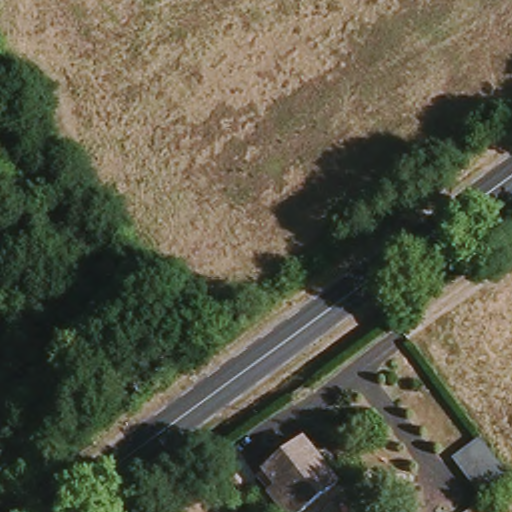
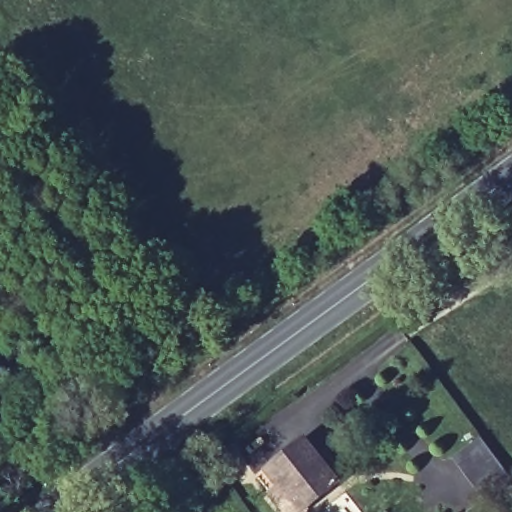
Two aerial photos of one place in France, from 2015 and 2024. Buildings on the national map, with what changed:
unchanged [(460,452),(483,434),(512,475),(489,492),(460,452)]
unchanged [(339,483),(302,512),(285,512),(271,495),(279,488),(266,471),(305,441),(339,483)]

